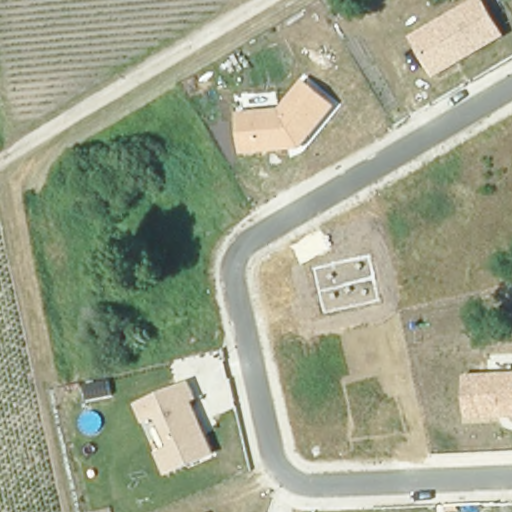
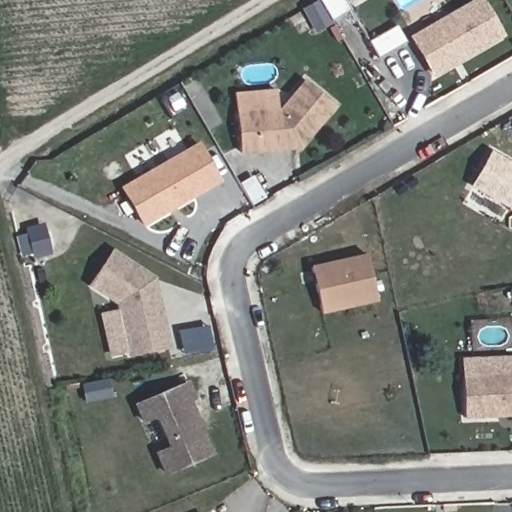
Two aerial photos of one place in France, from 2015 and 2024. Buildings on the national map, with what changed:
new [(347,8),(328,20),(316,0),(342,0),(347,8)]
unchanged [(471,0),(484,0),(506,36),(436,78),(411,37),(471,0)]
unchanged [(242,114),(282,109),(307,80),(337,107),(300,152),(242,157),(242,114)]
new [(143,226),(121,187),(200,141),(222,182),(143,226)]
new [(512,166),(512,208),(470,184),(487,152),(512,166)]
new [(118,309),(117,303),(90,284),(112,247),(157,277),(172,347),(128,357),(127,352),(110,356),(100,312),(118,309)]
unchanged [(322,311),(312,268),(367,256),(376,300),(322,311)]
unchanged [(463,373),(512,372),(512,418),(464,420),(463,373)]
unchanged [(191,384),(199,400),(194,404),(216,453),(166,475),(157,454),(168,446),(156,420),(143,423),(136,404),(191,384)]

